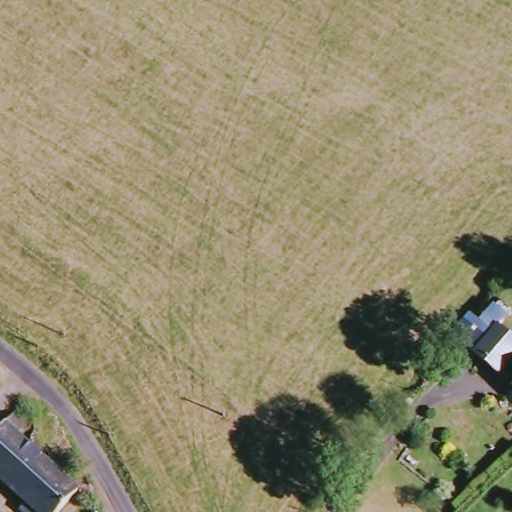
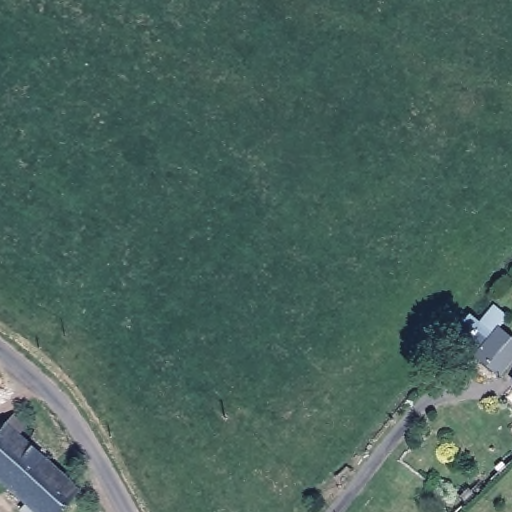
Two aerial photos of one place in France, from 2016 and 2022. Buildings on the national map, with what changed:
unchanged [(512,337),(512,368),(500,380),(478,355),(502,327),(512,337)]
unchanged [(0,390),(0,383),(3,386),(0,390)]
unchanged [(0,481),(0,440),(20,419),(35,434),(28,442),(83,498),(71,512),(28,512),(30,510),(0,481)]

